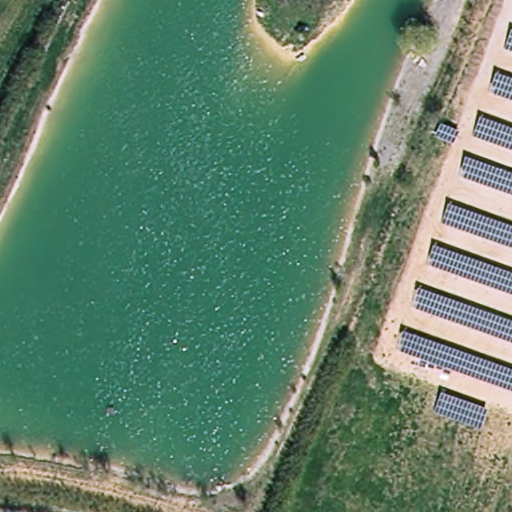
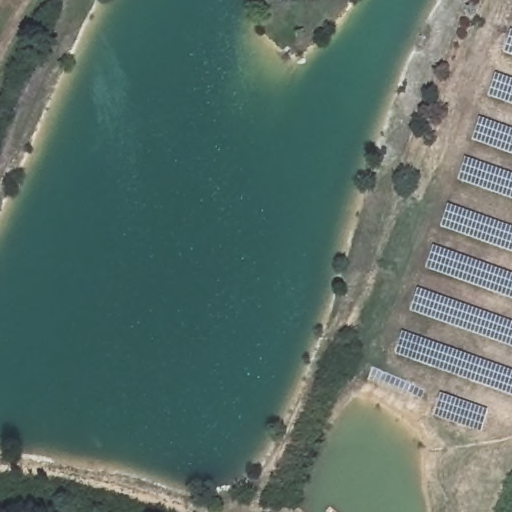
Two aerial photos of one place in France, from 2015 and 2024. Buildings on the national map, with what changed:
[]

